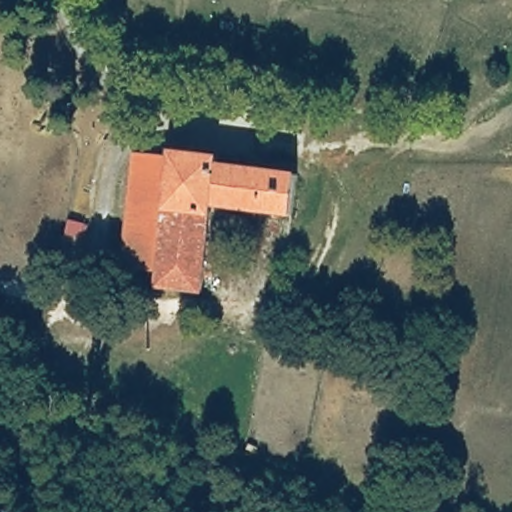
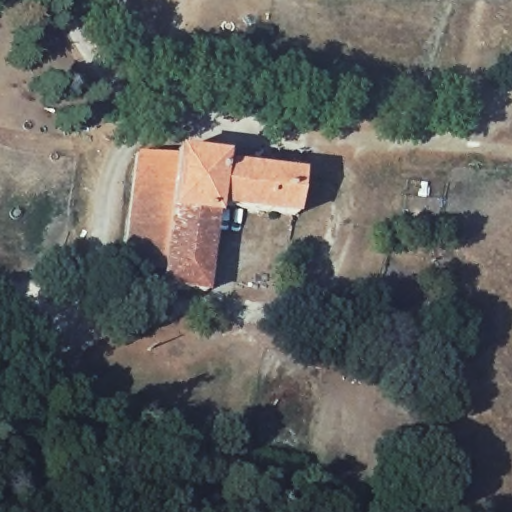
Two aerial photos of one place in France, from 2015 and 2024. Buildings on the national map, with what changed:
unchanged [(132,144),(215,150),(214,159),(298,163),(295,210),(212,202),(204,287),(163,284),(165,267),(122,262),(132,144)]

